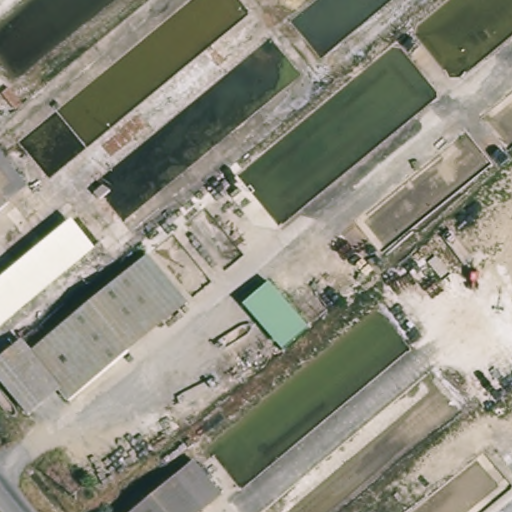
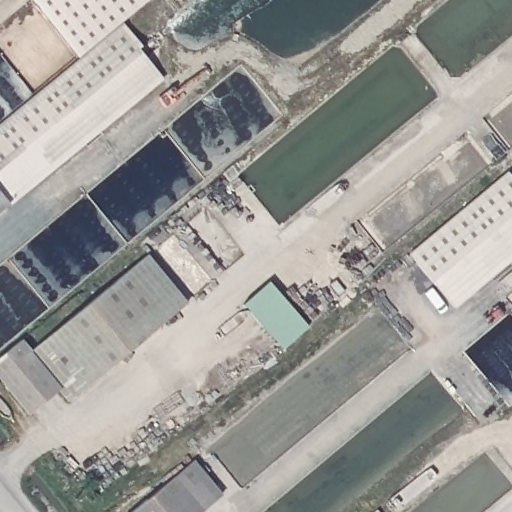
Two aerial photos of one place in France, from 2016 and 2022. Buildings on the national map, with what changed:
new [(79,58),(31,0),(149,0),(122,22),(141,44),(139,47),(164,79),(7,202),(0,208),(0,124),(79,58)]
demolished [(26,201),(0,221),(0,167),(26,201)]
new [(512,177),(512,259),(455,306),(410,253),(506,170),(512,177)]
demolished [(76,218),(101,251),(0,335),(0,283),(76,218)]
unchanged [(154,256),(195,307),(136,352),(95,302),(154,256)]
new [(270,281),(307,326),(281,348),(244,304),(270,281)]
unchanged [(77,398),(36,347),(95,302),(136,352),(77,398)]
new [(29,415),(0,381),(0,356),(21,338),(32,351),(36,347),(75,394),(68,401),(59,390),(29,415)]
unchanged [(213,512),(164,512),(156,502),(203,466),(230,499),(213,512)]
unchanged [(164,512),(143,512),(156,502),(164,512)]

